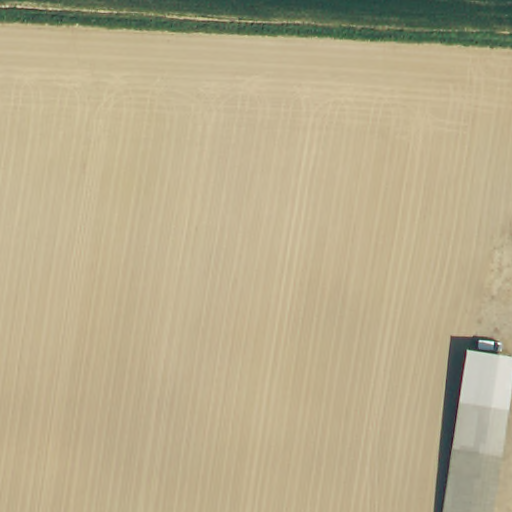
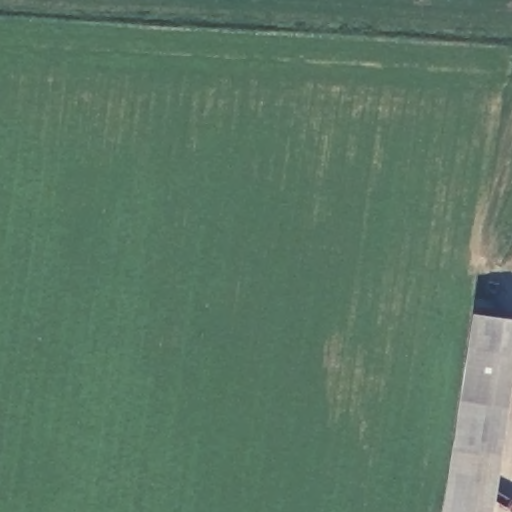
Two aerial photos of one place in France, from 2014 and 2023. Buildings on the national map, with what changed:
new [(512,323),(512,357),(471,351),(476,316),(512,323)]
unchanged [(512,407),(497,512),(444,512),(471,351),(512,357),(512,407)]

